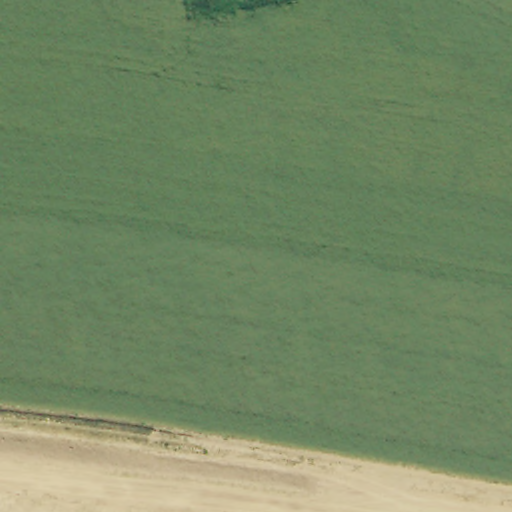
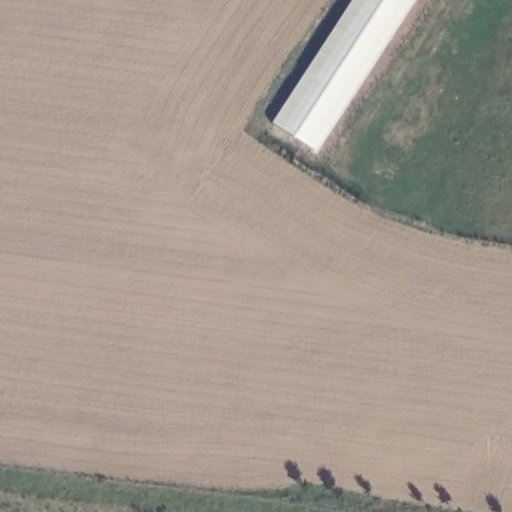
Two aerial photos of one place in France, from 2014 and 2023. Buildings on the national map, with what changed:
new [(315,151),(271,122),(350,0),(412,0),(315,151)]

